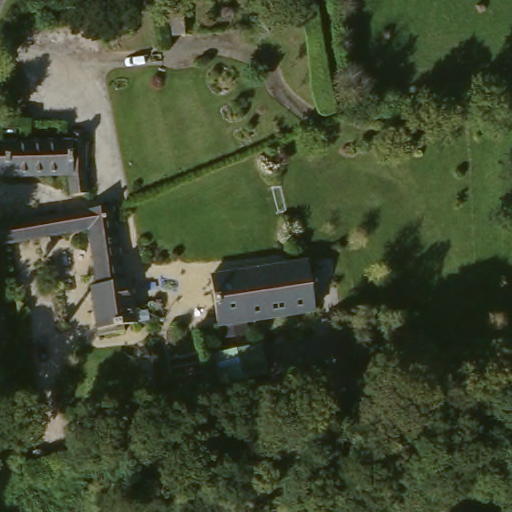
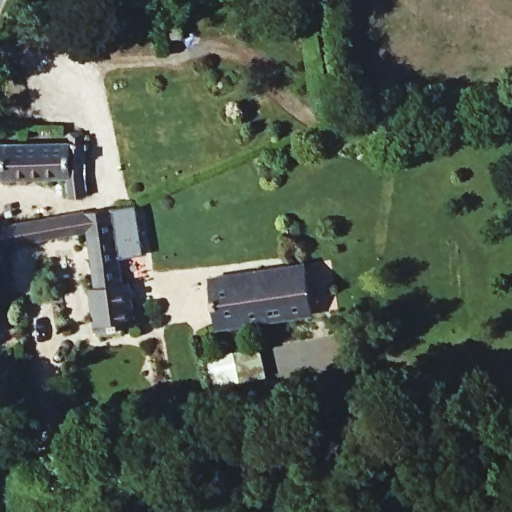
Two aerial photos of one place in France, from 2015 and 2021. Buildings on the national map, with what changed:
unchanged [(176,4),(179,35),(165,37),(162,5),(176,4)]
unchanged [(69,140),(68,132),(85,131),(87,196),(67,198),(64,178),(0,180),(0,142),(69,140)]
unchanged [(114,210),(124,282),(98,284),(90,230),(3,246),(0,227),(34,220),(85,211),(85,214),(112,209),(114,210)]
unchanged [(317,318),(218,330),(212,273),(309,263),(317,318)]
unchanged [(98,284),(124,282),(132,281),(137,325),(96,329),(92,286),(98,284)]
unchanged [(257,341),(262,371),(212,382),(206,352),(257,341)]

